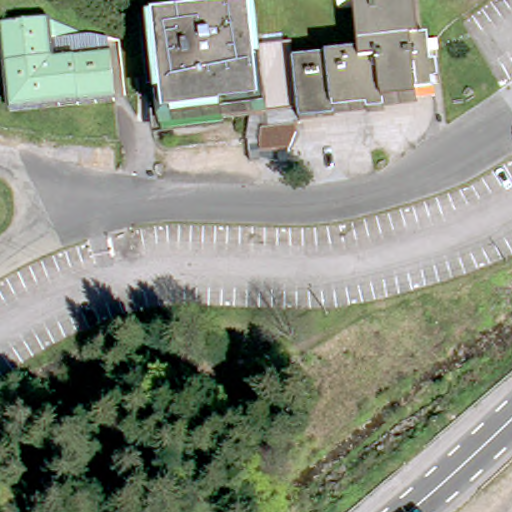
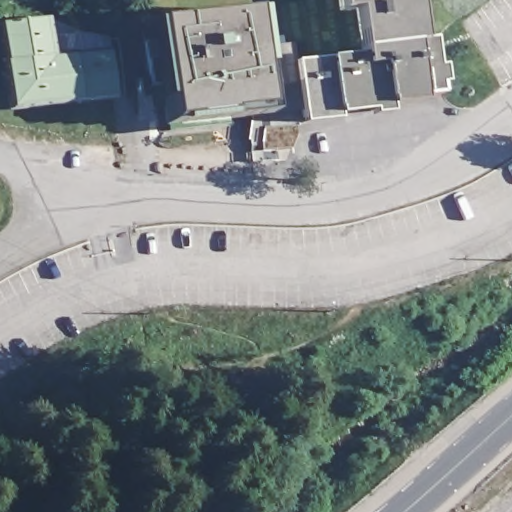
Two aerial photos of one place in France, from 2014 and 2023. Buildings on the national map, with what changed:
unchanged [(306,109),(300,59),(362,50),(358,4),(341,6),(341,0),(417,0),(423,35),(432,38),(438,87),(370,94),(371,100),(324,108),(308,109),(306,109)]
unchanged [(255,9),(260,47),(262,68),(277,66),(279,114),(231,120),(230,114),(159,123),(150,44),(147,25),(255,9)]
unchanged [(58,43),(63,61),(101,59),(103,96),(6,107),(0,52),(0,19),(35,16),(75,39),(58,43)]
unchanged [(297,41),(300,59),(306,109),(308,109),(279,114),(277,66),(262,68),(260,47),(297,41)]
unchanged [(159,123),(230,114),(231,120),(232,129),(160,138),(159,123)]

